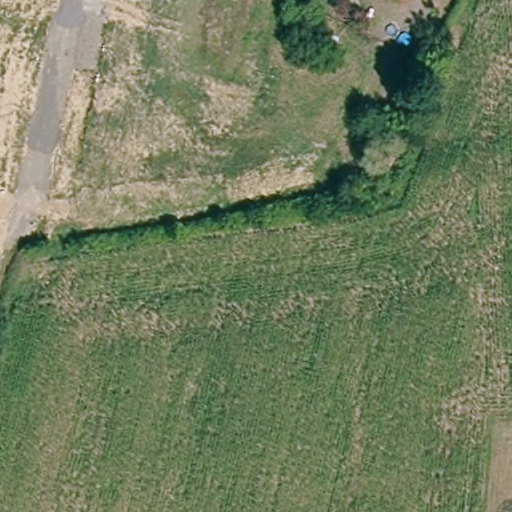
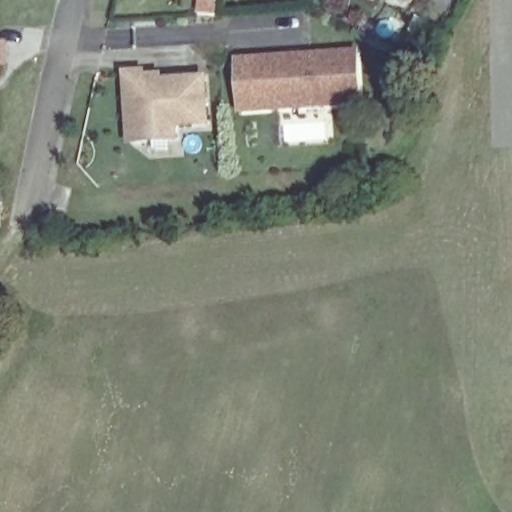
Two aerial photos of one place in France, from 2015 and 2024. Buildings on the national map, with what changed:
unchanged [(405,2),(402,0),(406,0),(405,2)]
demolished [(322,16),(337,14),(343,62),(329,64),(322,16)]
new [(7,42),(8,67),(0,67),(0,41),(7,42)]
new [(239,114),(234,59),(360,49),(364,104),(239,114)]
new [(180,130),(180,142),(129,146),(124,71),(145,69),(145,75),(163,74),(163,79),(207,76),(211,127),(180,130)]
demolished [(108,186),(106,142),(80,142),(80,131),(152,125),(158,183),(108,186)]

